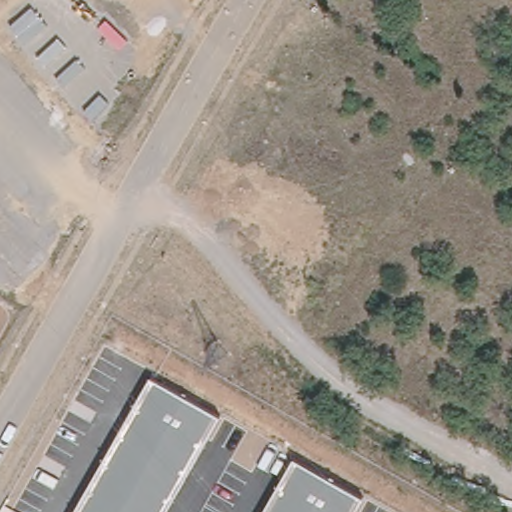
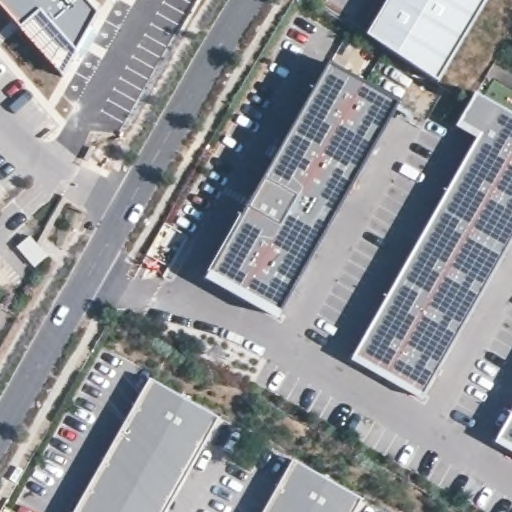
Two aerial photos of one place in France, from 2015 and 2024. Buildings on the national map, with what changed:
new [(100,12),(76,54),(37,15),(20,31),(0,8),(0,0),(89,0),(100,12)]
new [(437,80),(367,35),(389,0),(486,0),(437,80)]
new [(37,15),(76,54),(62,75),(20,31),(37,15)]
new [(400,105),(276,323),(203,282),(328,64),(400,105)]
new [(512,241),(421,401),(352,361),(479,141),(456,127),(475,95),(512,115),(512,241)]
unchanged [(75,512),(150,379),(219,418),(167,512),(75,512)]
new [(512,454),(495,444),(512,415),(512,454)]
unchanged [(264,512),(292,461),(362,500),(355,512),(264,512)]

